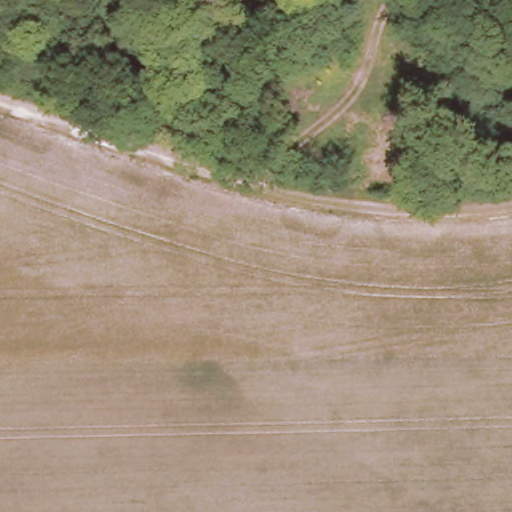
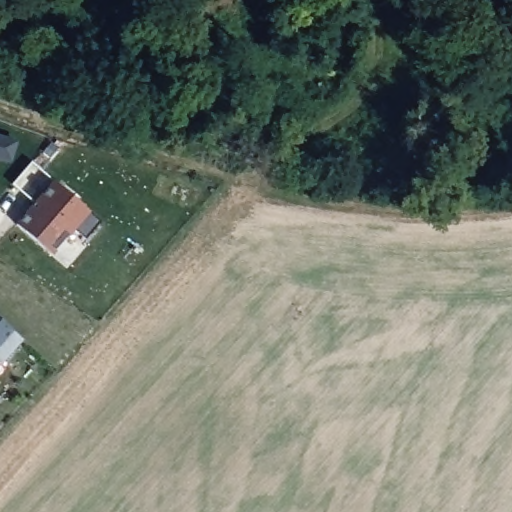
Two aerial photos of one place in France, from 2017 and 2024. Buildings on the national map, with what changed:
unchanged [(263,135),(253,170),(218,154),(228,124),(263,135)]
new [(14,141),(8,161),(0,158),(0,137),(14,141)]
unchanged [(508,164),(512,164),(512,185),(508,186),(508,164)]
new [(99,221),(84,239),(71,228),(49,254),(15,224),(53,181),(99,221)]
new [(0,361),(0,321),(21,339),(0,361)]

